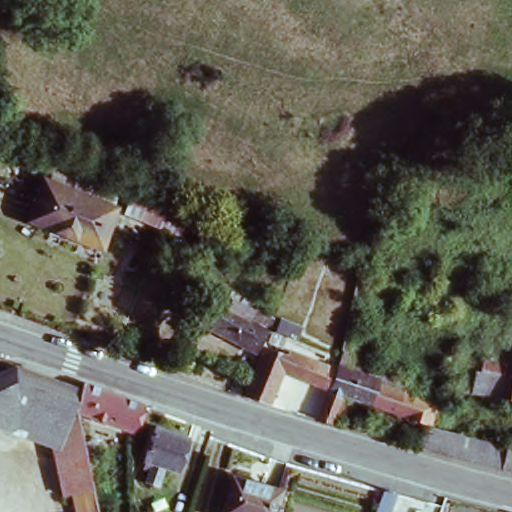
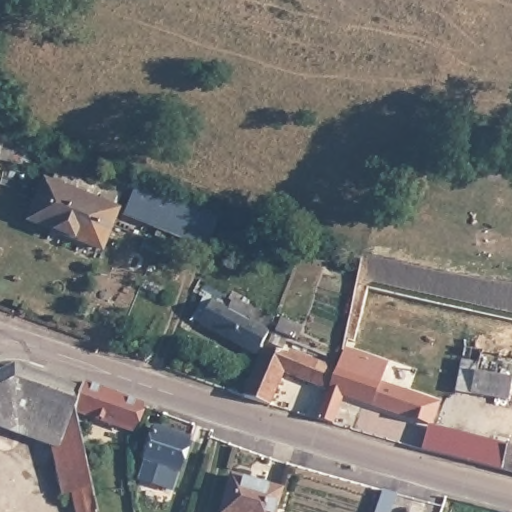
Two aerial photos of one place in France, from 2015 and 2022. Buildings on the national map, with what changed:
unchanged [(75,198),(81,183),(117,197),(112,213),(115,214),(99,254),(26,225),(42,185),(75,198)]
unchanged [(125,218),(139,186),(175,201),(162,231),(125,218)]
unchanged [(175,201),(215,217),(202,248),(162,231),(175,201)]
unchanged [(212,301),(210,298),(213,292),(239,305),(243,296),(260,305),(258,309),(274,318),(259,353),(201,322),(212,301)]
unchanged [(282,320),(302,328),(298,339),(277,331),(282,320)]
unchanged [(272,335),(285,341),(283,348),(270,342),(272,335)]
unchanged [(448,406),(443,421),(434,418),(433,424),(346,395),(335,423),(319,419),(324,405),(330,390),(337,370),(340,362),(346,345),(354,347),(352,353),(357,355),(356,359),(383,370),(385,373),(411,382),(413,385),(442,395),(451,397),(448,406)]
unchanged [(458,390),(462,368),(454,367),(455,359),(463,360),(467,346),(512,354),(512,396),(511,399),(458,390)]
unchanged [(285,372),(272,404),(244,395),(265,348),(288,357),(292,351),(337,370),(330,390),(285,372)]
unchanged [(13,368),(79,392),(73,412),(81,455),(52,460),(50,446),(0,429),(0,374),(13,368)]
unchanged [(82,385),(139,407),(130,433),(73,412),(79,392),(82,385)]
unchanged [(512,396),(512,399),(511,399),(512,396)]
unchanged [(188,436),(180,468),(167,462),(160,481),(151,477),(155,459),(149,457),(158,425),(188,436)]
unchanged [(429,432),(446,430),(512,447),(512,472),(425,449),(429,432)]
unchanged [(90,496),(93,512),(91,511),(91,512),(75,512),(72,493),(60,494),(52,460),(81,455),(90,496)]
unchanged [(277,512),(225,512),(235,479),(282,492),(277,512)]
unchanged [(391,512),(379,512),(385,492),(396,495),(391,512)]

